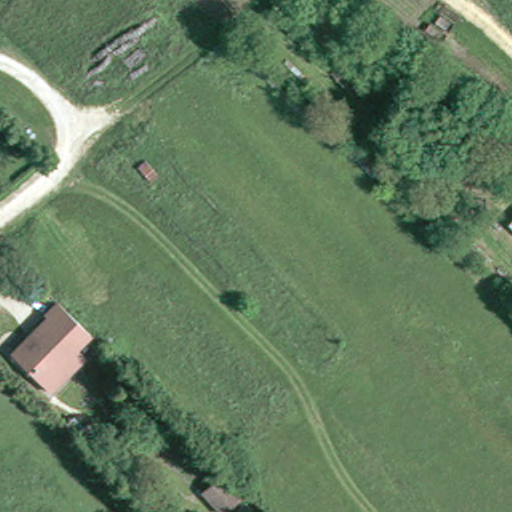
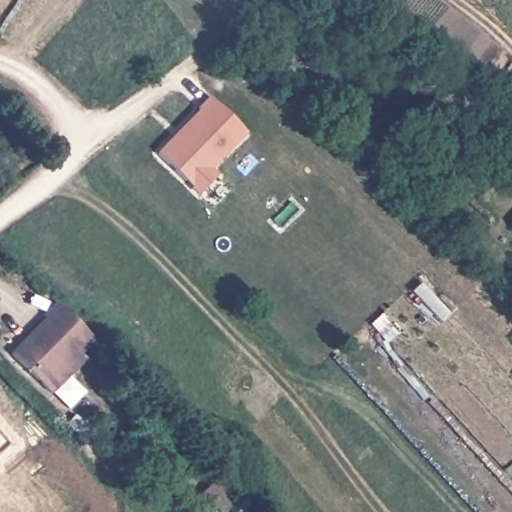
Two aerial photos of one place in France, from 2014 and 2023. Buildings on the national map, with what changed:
new [(170,139),(173,141),(177,136),(175,134),(195,111),(194,110),(206,98),(242,133),(206,170),(213,177),(196,195),(154,155),(170,139)]
unchanged [(512,228),(512,229),(511,229),(512,228)]
unchanged [(13,356),(48,318),(46,316),(58,302),(93,337),(45,386),(13,356)]
unchanged [(237,499),(223,512),(216,512),(198,493),(217,477),(237,499)]

